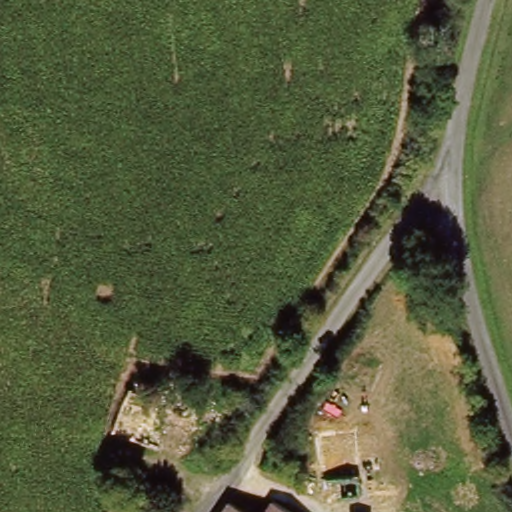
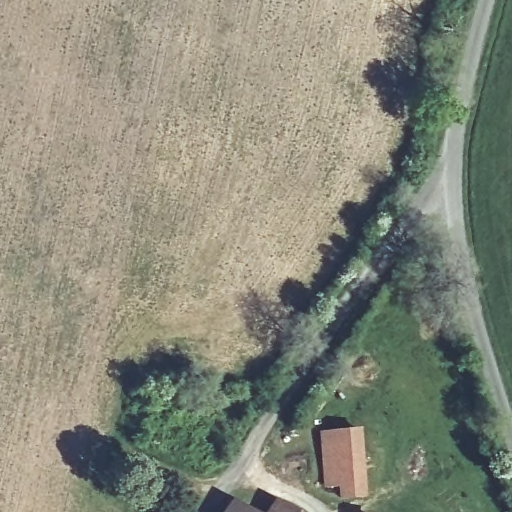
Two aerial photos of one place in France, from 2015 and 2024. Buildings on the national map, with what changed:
new [(338,498),(336,487),(324,488),(318,432),(359,428),(365,496),(338,498)]
demolished [(315,471),(362,467),(365,493),(332,501),(330,487),(318,487),(315,471)]
unchanged [(228,500),(245,512),(220,512),(228,500)]
unchanged [(269,500),(287,512),(261,512),(269,500)]

